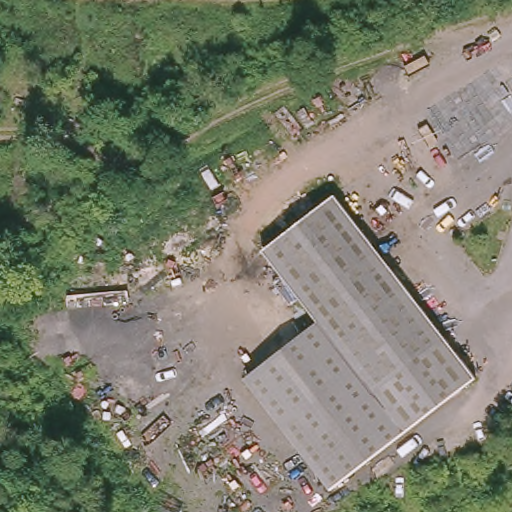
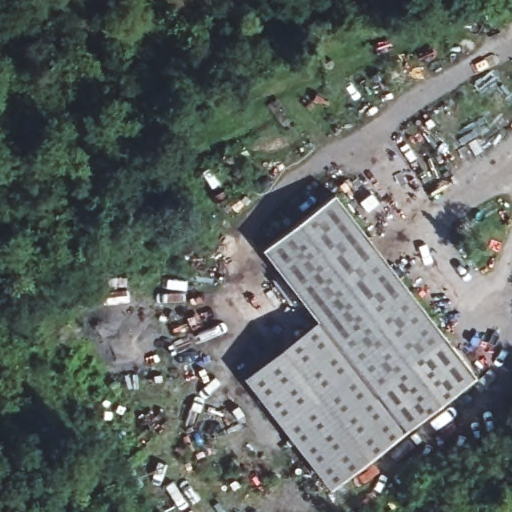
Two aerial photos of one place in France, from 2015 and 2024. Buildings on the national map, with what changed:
unchanged [(328,183),(447,337),(375,390),(312,310),(257,239),(328,183)]
unchanged [(375,390),(400,422),(328,477),(242,366),(312,310),(375,390)]
unchanged [(447,337),(470,367),(400,422),(375,390),(447,337)]

